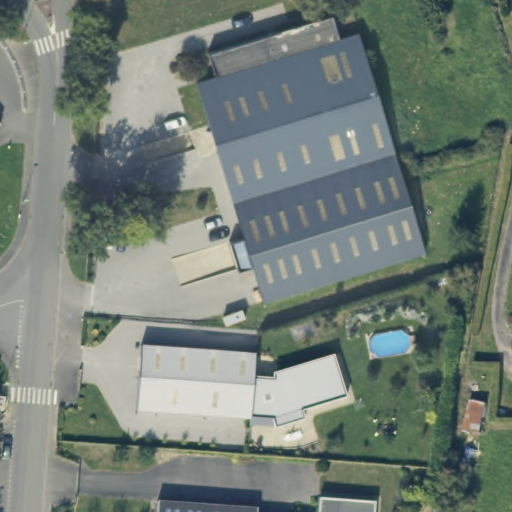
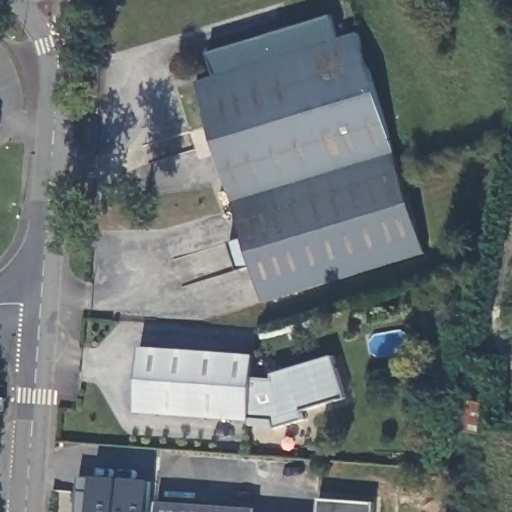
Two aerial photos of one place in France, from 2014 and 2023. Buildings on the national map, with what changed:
unchanged [(236,198),(203,78),(220,73),(214,48),(335,12),(343,35),(360,30),(399,152),(236,198)]
unchanged [(2,123),(0,125),(0,120),(2,123)]
unchanged [(230,240),(246,236),(236,198),(399,152),(409,180),(430,250),(264,300),(254,264),(238,269),(230,240)]
unchanged [(251,419),(138,411),(142,345),(255,353),(254,379),(274,381),(273,374),(336,357),(347,397),(305,409),(307,420),(279,429),(278,426),(251,424),(251,419)]
new [(77,512),(80,475),(94,476),(118,478),(151,481),(149,512),(77,512)]
unchanged [(373,508),(373,512),(318,512),(319,503),(373,508)]
unchanged [(156,512),(156,507),(211,512),(156,512)]

